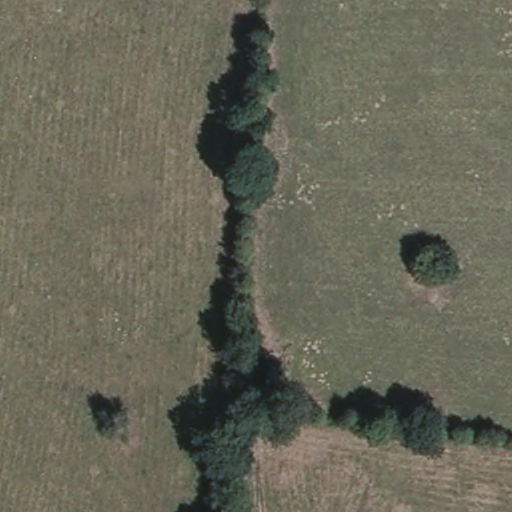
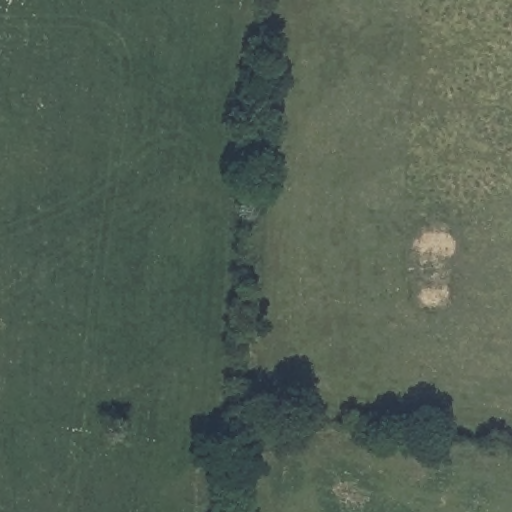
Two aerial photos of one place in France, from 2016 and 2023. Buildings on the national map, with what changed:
[]

